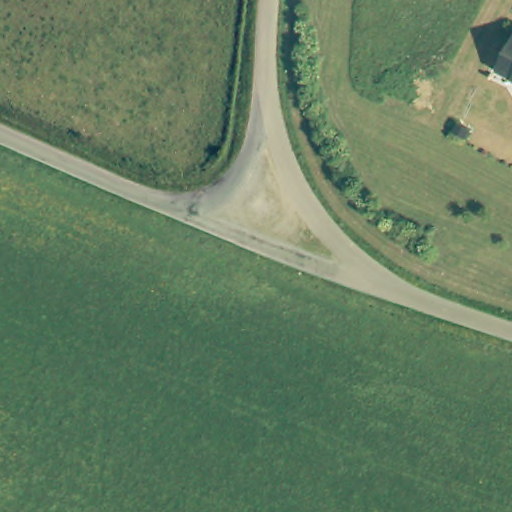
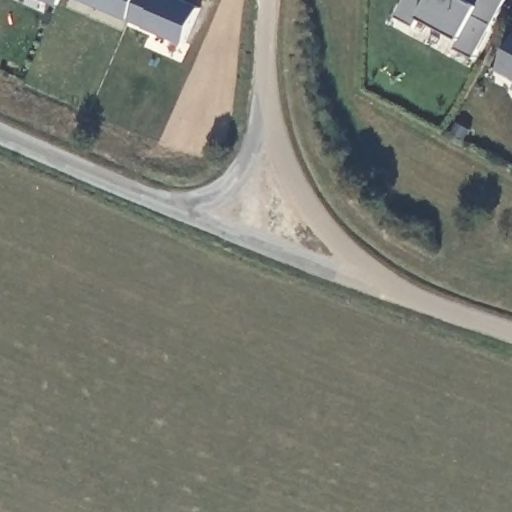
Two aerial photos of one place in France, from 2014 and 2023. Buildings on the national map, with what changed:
new [(42,0),(58,0),(55,5),(42,0)]
new [(81,0),(142,0),(132,22),(81,0)]
new [(187,46),(132,22),(142,0),(174,0),(202,12),(187,46)]
new [(465,0),(478,7),(482,0),(506,0),(476,59),(454,49),(460,39),(421,17),(416,27),(396,17),(405,0),(465,0)]
unchanged [(512,39),(512,80),(496,71),(512,39)]

